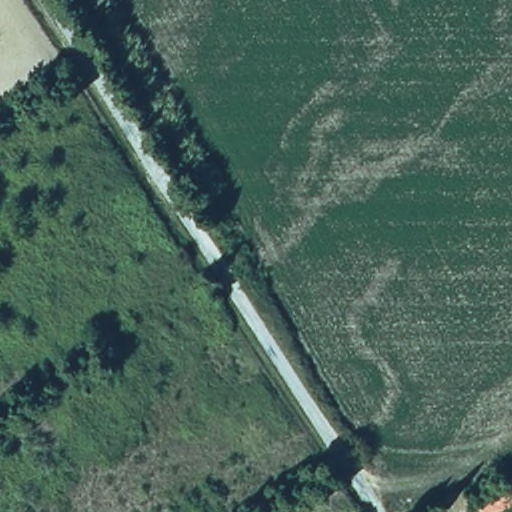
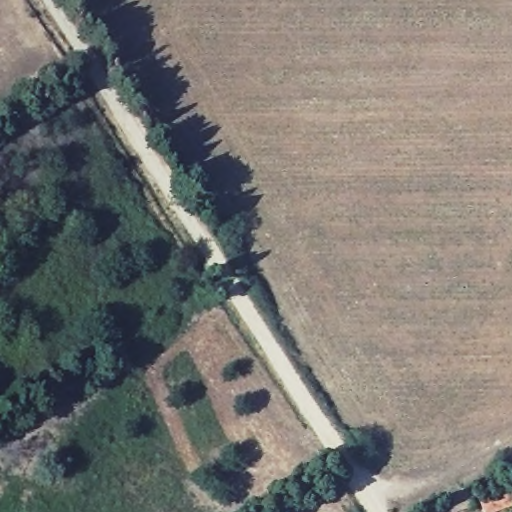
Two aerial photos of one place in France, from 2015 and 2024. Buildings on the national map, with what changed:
unchanged [(508,512),(480,512),(473,496),(512,479),(512,510),(508,512)]

